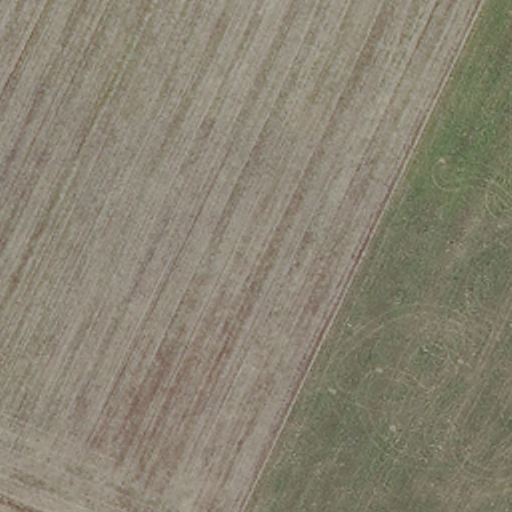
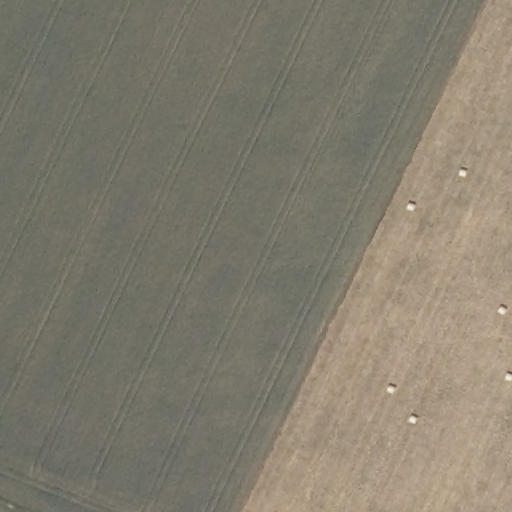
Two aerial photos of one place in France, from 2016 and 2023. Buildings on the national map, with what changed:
[]

